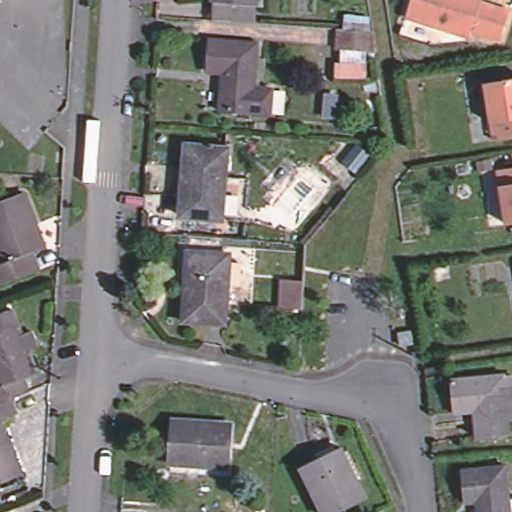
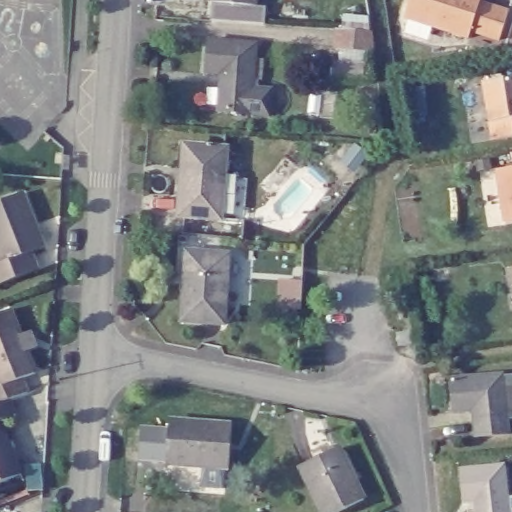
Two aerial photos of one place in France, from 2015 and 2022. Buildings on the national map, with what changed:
unchanged [(207,9),(208,0),(249,0),(248,12),(207,9)]
unchanged [(505,41),(478,32),(475,40),(411,20),(418,0),(489,0),(487,5),(512,12),(512,19),(505,41)]
unchanged [(376,53),(340,50),(341,29),(373,32),(376,53)]
unchanged [(249,106),(215,103),(217,75),(202,74),(204,42),(253,46),(251,75),(266,76),(263,107),(249,106)]
unchanged [(499,142),(490,85),(512,81),(512,139),(499,142)]
unchanged [(231,218),(215,217),(176,214),(181,145),(221,148),(218,181),(234,182),(231,218)]
unchanged [(508,223),(500,170),(512,167),(512,222),(508,223)]
unchanged [(0,204),(20,196),(41,249),(28,254),(35,271),(0,286),(0,204)]
unchanged [(230,253),(225,323),(181,319),(187,249),(230,253)]
unchanged [(302,307),(287,306),(289,279),(304,280),(302,307)]
unchanged [(15,319),(35,368),(22,373),(29,389),(8,397),(14,411),(0,417),(0,309),(9,305),(15,319)]
unchanged [(411,332),(413,344),(401,346),(399,334),(411,332)]
unchanged [(505,381),(512,381),(512,424),(505,425),(505,437),(476,438),(476,411),(453,411),(453,379),(505,379),(505,381)]
unchanged [(0,479),(0,417),(22,470),(0,479)]
unchanged [(232,422),(229,465),(170,461),(172,418),(232,422)]
unchanged [(364,498),(332,512),(324,512),(302,464),(340,447),(364,498)]
unchanged [(512,512),(480,512),(479,500),(466,501),(463,471),(507,464),(512,512)]

